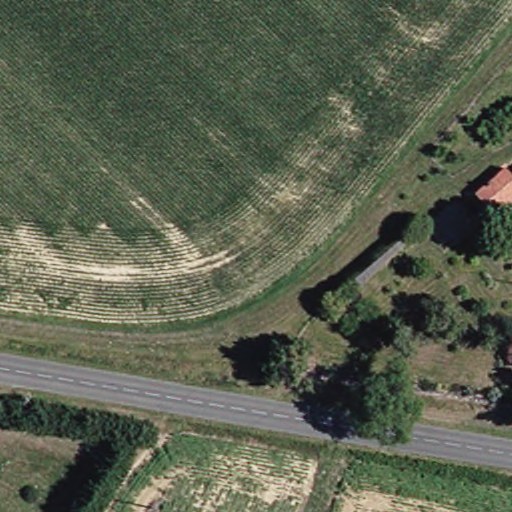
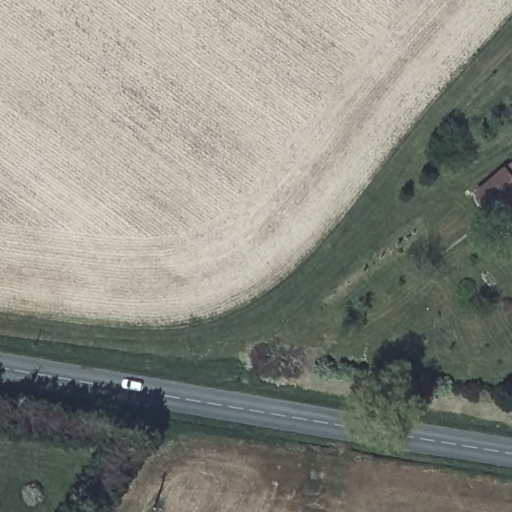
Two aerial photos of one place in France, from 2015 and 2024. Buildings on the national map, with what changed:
unchanged [(475,201),(500,172),(512,181),(512,205),(496,217),(475,201)]

